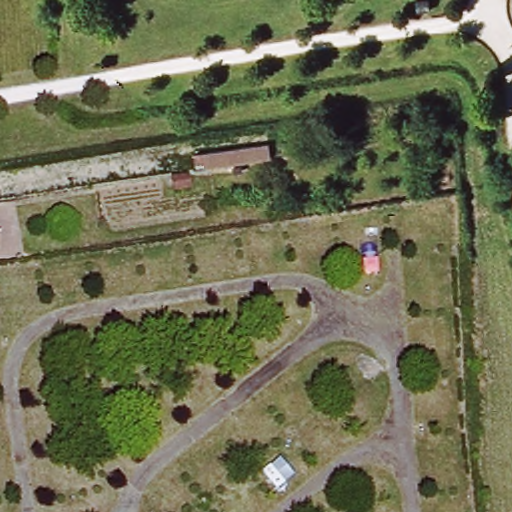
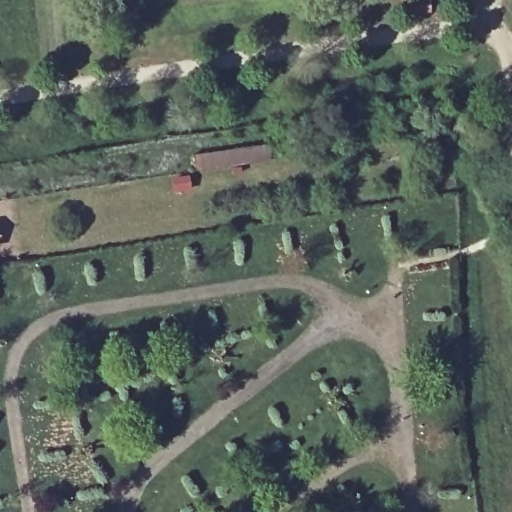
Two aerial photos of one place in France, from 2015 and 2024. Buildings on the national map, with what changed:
unchanged [(347,137),(349,146),(335,148),(333,139),(347,137)]
unchanged [(271,141),(274,159),(195,171),(192,153),(271,141)]

